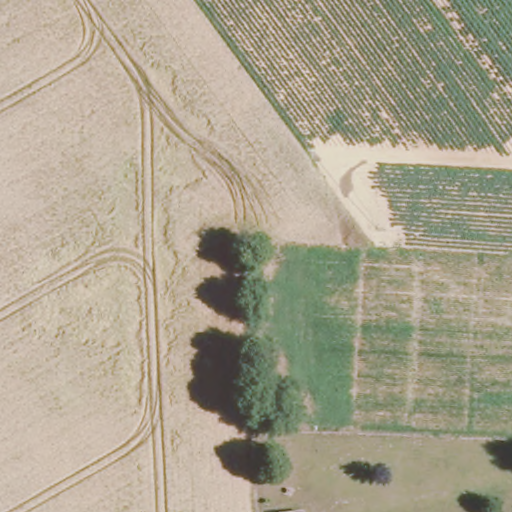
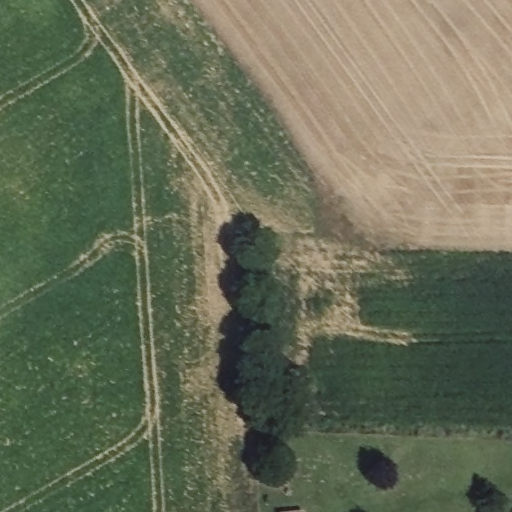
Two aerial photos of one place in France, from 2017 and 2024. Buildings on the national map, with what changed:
unchanged [(299,512),(271,512),(298,508),(299,512)]

